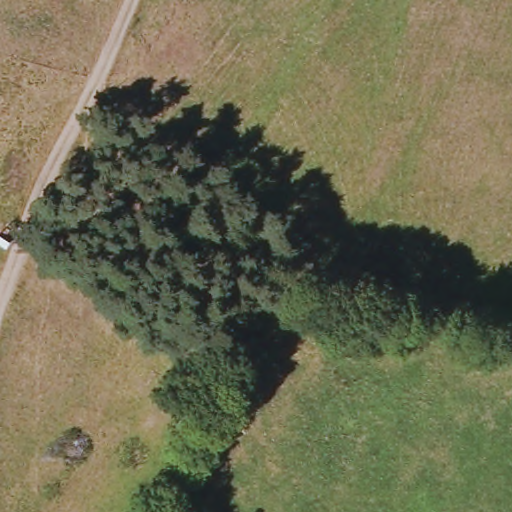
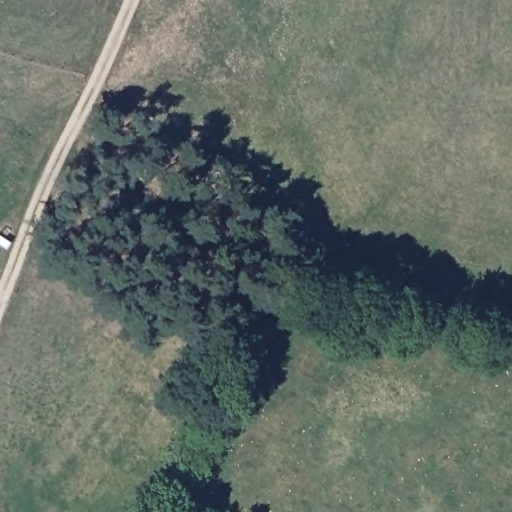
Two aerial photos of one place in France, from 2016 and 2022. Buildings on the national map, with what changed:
unchanged [(10,242),(3,252),(0,250),(0,235),(10,242)]

